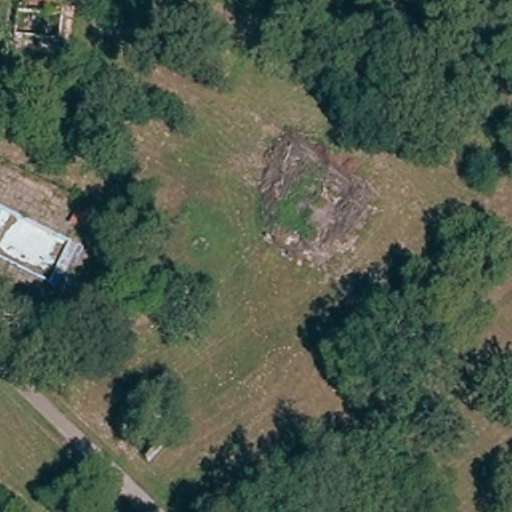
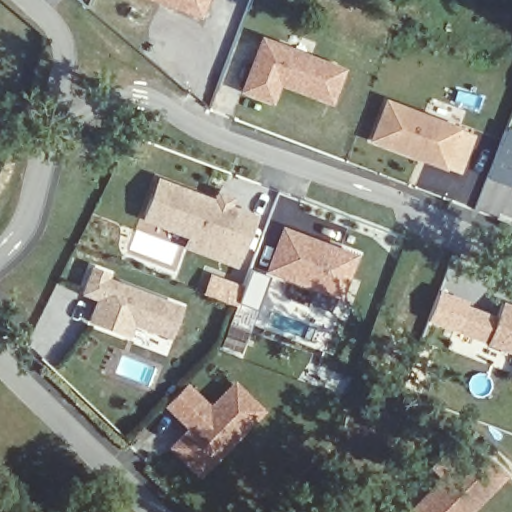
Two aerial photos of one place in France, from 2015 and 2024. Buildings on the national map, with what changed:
new [(150,0),(208,0),(200,19),(150,0)]
new [(344,70),(330,106),(280,87),(271,105),(237,94),(259,36),(344,70)]
new [(385,96),(462,126),(447,170),(368,142),(385,96)]
new [(506,127),(512,129),(512,187),(486,179),(506,127)]
new [(213,199),(215,191),(235,198),(231,207),(257,216),(236,270),(181,250),(186,238),(140,221),(156,180),(213,199)]
new [(357,255),(340,301),(262,273),(281,227),(357,255)]
new [(109,278),(181,305),(170,339),(133,325),(130,336),(87,321),(95,299),(82,294),(90,265),(110,272),(109,278)]
new [(501,303),(512,307),(512,354),(454,334),(462,304),(497,318),(501,303)]
new [(175,444),(195,425),(184,415),(169,401),(187,381),(202,396),(214,406),(237,381),(266,409),(225,449),(204,472),(195,463),(175,444)]
new [(472,441),(507,476),(472,512),(401,512),(472,441)]

